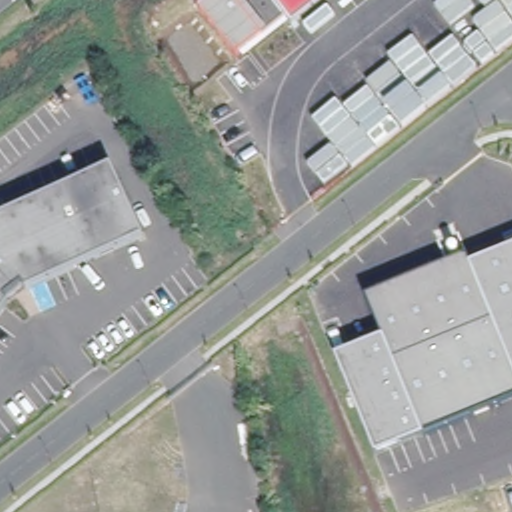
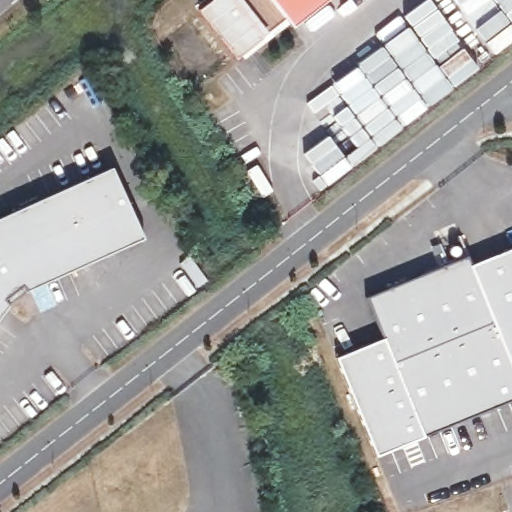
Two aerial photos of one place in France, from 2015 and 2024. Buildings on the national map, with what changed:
unchanged [(288,22),(243,60),(239,54),(236,55),(198,8),(208,0),(327,0),(292,27),(288,22)]
unchanged [(111,166),(142,237),(26,289),(7,304),(0,314),(0,216),(111,166)]
unchanged [(440,249),(461,241),(469,264),(512,247),(512,400),(375,454),(334,356),(382,336),(366,298),(446,265),(440,249)]

